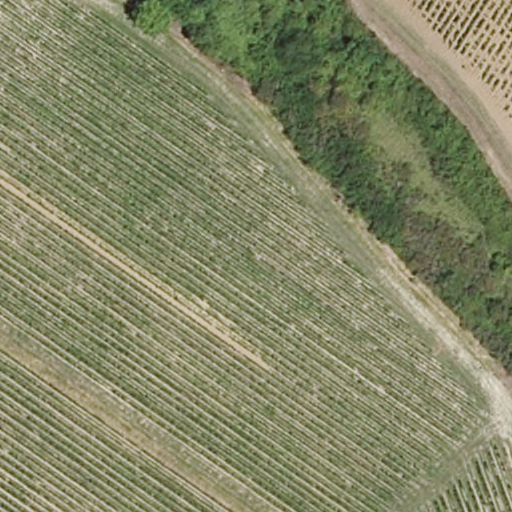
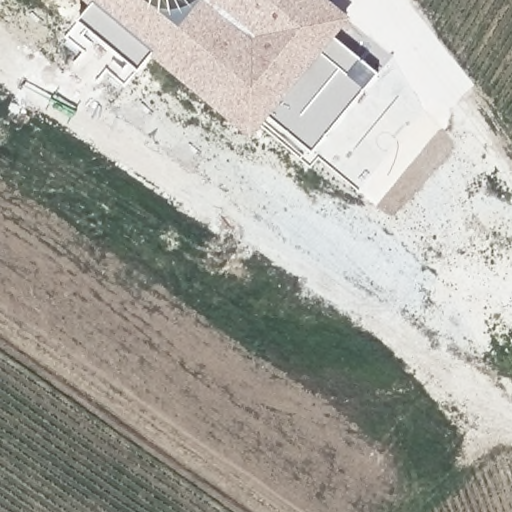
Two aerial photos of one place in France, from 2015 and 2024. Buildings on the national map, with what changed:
new [(334,36),(377,72),(312,148),(270,113),(251,136),(151,52),(140,66),(80,18),(92,4),(88,0),(332,0),(351,16),(334,36)]

